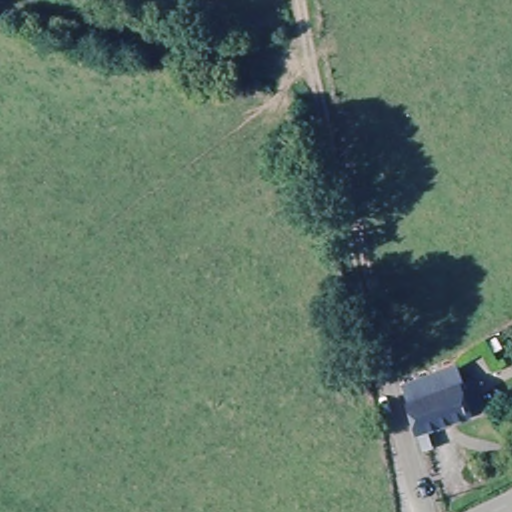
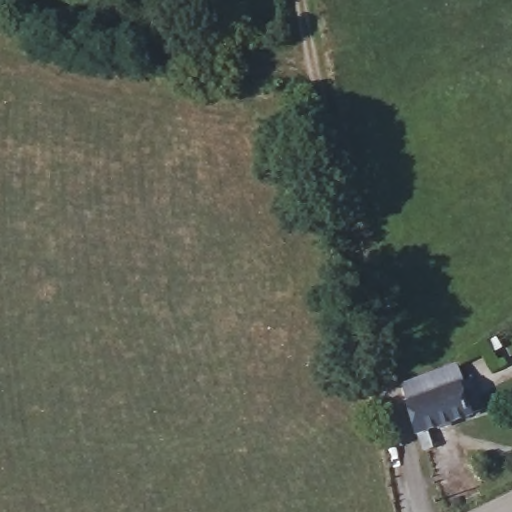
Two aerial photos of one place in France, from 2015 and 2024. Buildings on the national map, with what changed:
unchanged [(401,386),(456,359),(466,382),(476,377),(486,403),(432,430),(439,448),(426,454),(401,386)]

